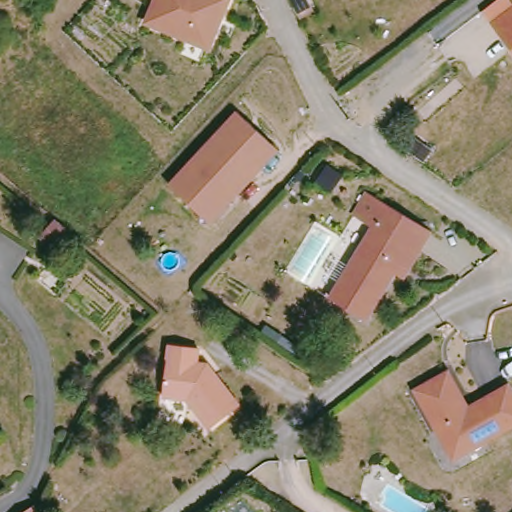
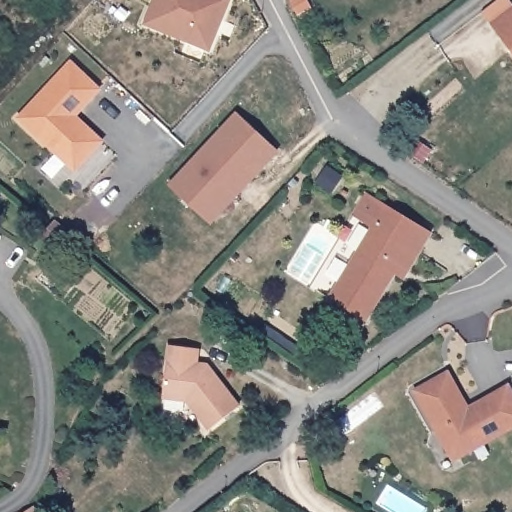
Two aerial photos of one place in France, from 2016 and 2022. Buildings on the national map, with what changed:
unchanged [(209,49),(146,23),(155,0),(229,0),(209,49)]
unchanged [(499,30),(489,16),(508,0),(509,0),(512,4),(512,47),(499,30)]
new [(75,174),(14,121),(70,60),(103,89),(78,116),(104,142),(75,174)]
unchanged [(262,165),(251,155),(226,183),(237,193),(209,223),(169,186),(223,128),(237,112),(246,120),(277,149),(262,165)]
unchanged [(346,178),(336,194),(321,184),(332,169),(346,178)]
unchanged [(436,232),(413,270),(405,265),(370,321),(336,300),(379,227),(359,215),(373,193),(436,232)]
unchanged [(63,258),(43,242),(56,226),(75,243),(63,258)]
unchanged [(211,424),(188,396),(163,393),(169,341),(199,344),(197,360),(203,360),(212,372),(215,370),(240,402),(211,424)]
unchanged [(454,452),(419,391),(453,372),(474,408),(512,386),(512,431),(492,443),(459,461),(454,452)]
unchanged [(39,512),(33,512),(37,509),(39,512)]

